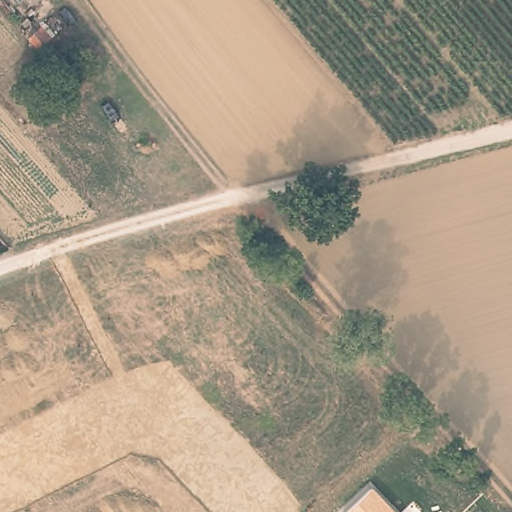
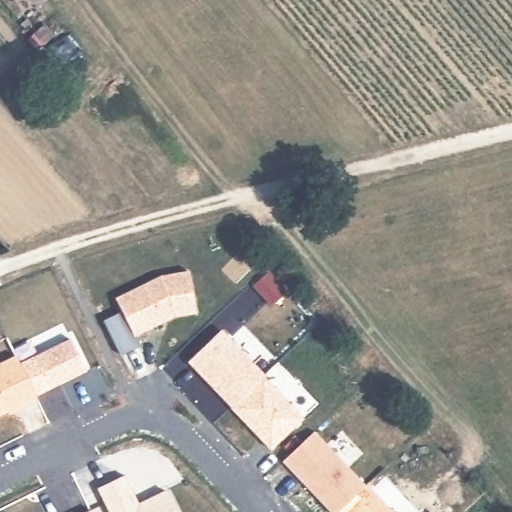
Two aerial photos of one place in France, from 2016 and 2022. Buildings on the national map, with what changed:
unchanged [(17,46),(34,32),(76,81),(56,95),(17,46)]
new [(121,307),(115,294),(161,272),(190,267),(196,309),(173,312),(135,331),(139,340),(119,350),(103,317),(121,307)]
new [(187,361),(221,328),(266,373),(264,375),(304,417),(272,450),(231,407),(187,361)]
new [(69,336),(85,368),(47,386),(31,354),(69,336)]
new [(10,414),(8,411),(0,415),(0,361),(15,353),(37,401),(10,414)]
new [(313,429),(366,484),(337,512),(329,512),(281,461),(313,429)]
new [(125,474),(139,501),(166,489),(177,512),(109,512),(97,487),(125,474)]
unchanged [(395,512),(348,512),(373,489),(395,512)]
new [(91,512),(81,512),(89,508),(91,512)]

